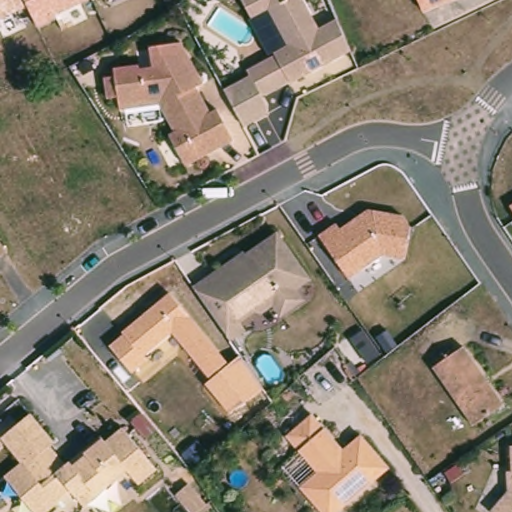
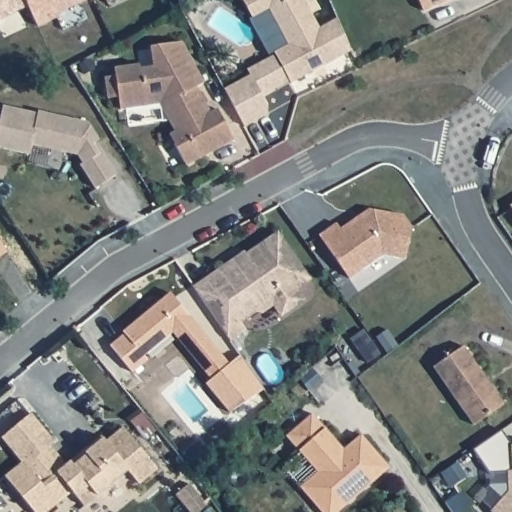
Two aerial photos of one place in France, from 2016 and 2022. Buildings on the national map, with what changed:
unchanged [(55,15),(56,20),(37,29),(28,6),(0,22),(0,0),(88,0),(55,15)]
unchanged [(318,27),(336,20),(353,51),(261,95),(270,114),(244,126),(224,88),(248,75),(245,70),(269,55),(241,0),(305,0),(318,27)]
unchanged [(428,8),(425,0),(449,0),(428,8)]
unchanged [(171,134),(160,106),(122,110),(121,97),(104,100),(102,76),(114,74),(113,68),(147,65),(148,50),(157,46),(181,43),(205,83),(194,87),(208,110),(218,107),(235,142),(187,167),(171,134)]
new [(42,113),(91,124),(102,141),(99,143),(105,152),(119,176),(99,189),(84,165),(86,163),(81,155),(36,145),(34,155),(0,147),(0,138),(7,108),(41,115),(42,113)]
unchanged [(371,210),(401,212),(411,225),(403,259),(380,257),(349,278),(321,233),(371,210)]
unchanged [(276,231),(310,280),(296,288),(305,300),(277,315),(269,306),(259,315),(255,312),(241,318),(246,328),(229,341),(192,288),(276,231)]
unchanged [(0,258),(0,234),(11,251),(0,258)]
unchanged [(147,354),(151,359),(136,371),(114,344),(128,333),(126,331),(174,292),(232,363),(215,378),(176,331),(147,354)]
unchanged [(478,426),(438,368),(467,347),(507,405),(478,426)]
unchanged [(240,357),(261,386),(230,412),(206,384),(215,378),(232,363),(240,357)]
unchanged [(322,469),(290,431),(316,409),(343,440),(340,443),(344,449),(365,431),(393,464),(337,512),(328,512),(319,501),(305,484),(312,477),(322,469)]
unchanged [(76,491),(71,495),(51,512),(38,512),(9,476),(26,462),(5,438),(17,428),(33,415),(35,413),(59,442),(57,444),(54,446),(70,465),(72,463),(74,461),(105,436),(107,438),(110,441),(113,439),(127,427),(161,469),(146,481),(143,484),(132,470),(100,496),(88,506),(76,491)]
unchanged [(500,512),(495,508),(512,489),(512,512),(500,512)]

